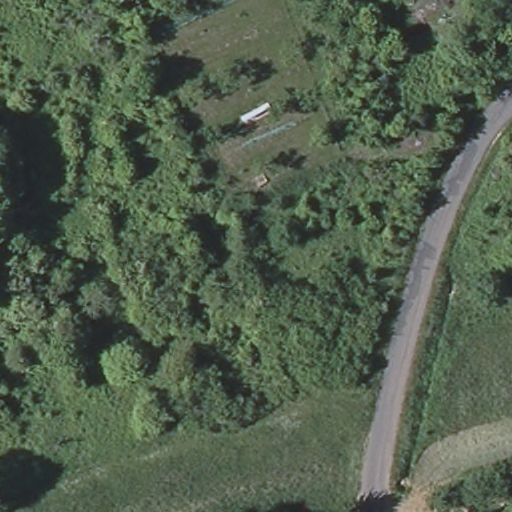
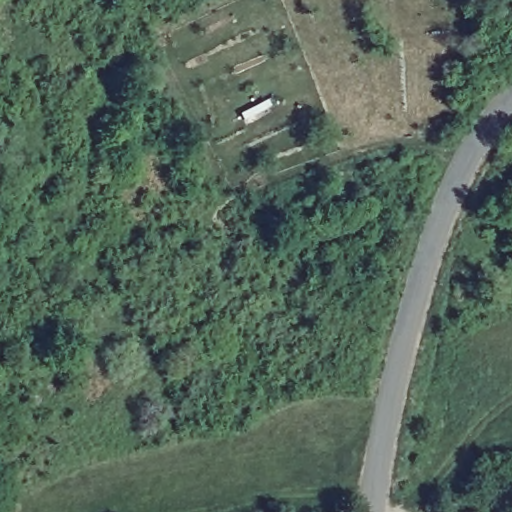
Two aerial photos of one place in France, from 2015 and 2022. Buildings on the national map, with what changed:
unchanged [(285,182),(280,169),(294,163),(299,176),(285,182)]

